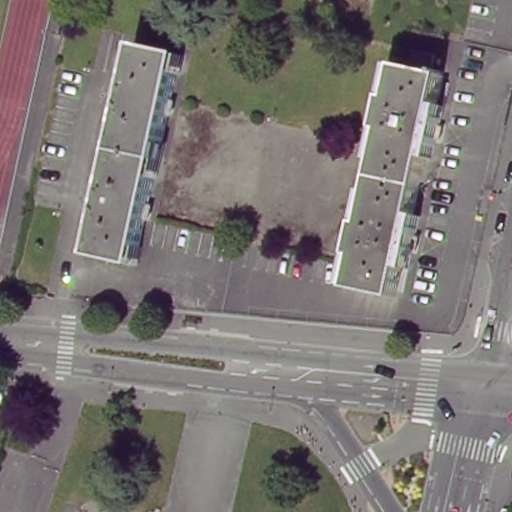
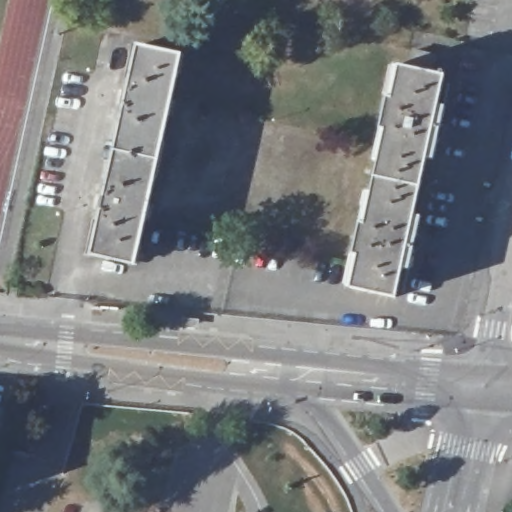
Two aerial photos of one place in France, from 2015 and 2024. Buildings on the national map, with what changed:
unchanged [(157,142),(150,172),(153,173),(138,244),(135,245),(131,263),(89,254),(97,221),(94,220),(102,185),(105,185),(119,116),(117,115),(124,79),(127,80),(134,44),(176,53),(172,68),(176,69),(160,144),(157,142)]
unchanged [(442,104),(430,157),(423,155),(412,213),(418,215),(406,267),(399,266),(393,295),(348,286),(355,255),(350,254),(357,221),(361,222),(381,129),(377,127),(384,95),(388,96),(395,64),(408,66),(411,47),(433,51),(429,71),(441,74),(435,101),(442,104)]

